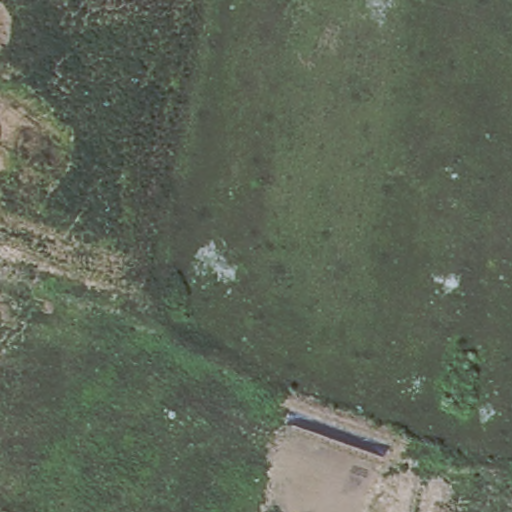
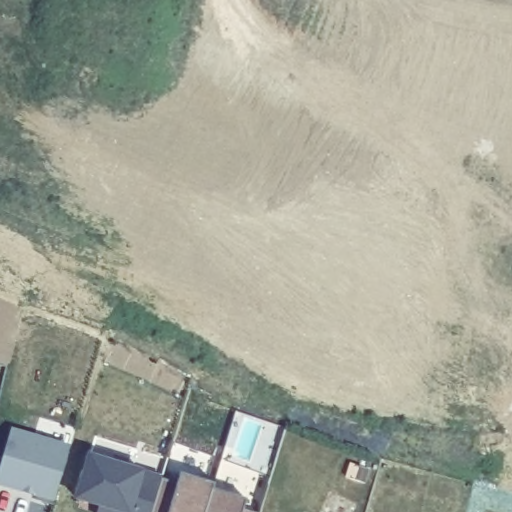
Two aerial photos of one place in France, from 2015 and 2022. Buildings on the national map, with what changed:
new [(53,503),(0,488),(0,465),(11,429),(69,446),(53,503)]
new [(87,454),(144,471),(162,476),(160,480),(151,512),(96,512),(97,508),(73,500),(87,454)]
new [(160,480),(178,486),(180,475),(214,484),(212,491),(245,501),(242,510),(247,512),(151,512),(160,480)]

